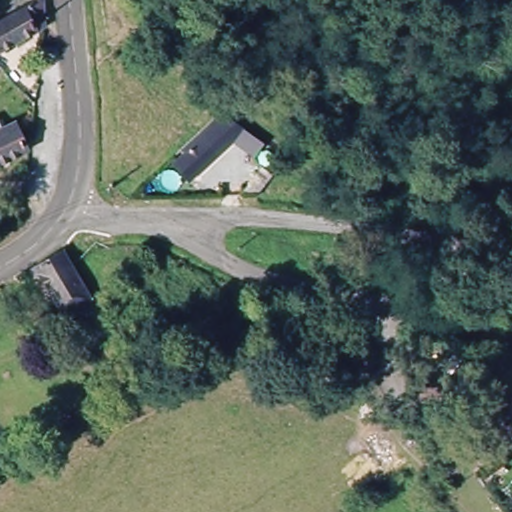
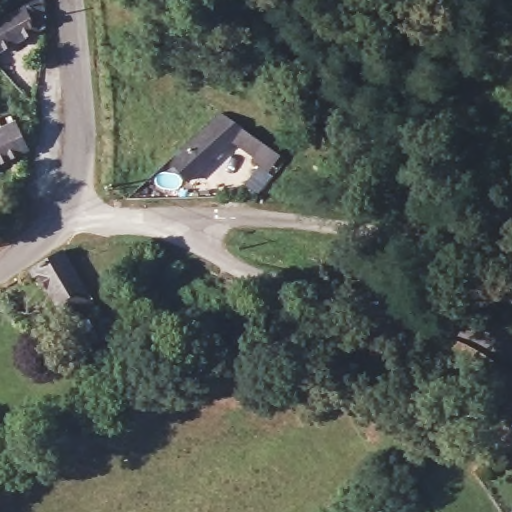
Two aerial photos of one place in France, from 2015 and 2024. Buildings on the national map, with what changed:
unchanged [(39,28),(0,54),(0,22),(34,0),(39,28)]
unchanged [(0,168),(0,120),(6,129),(17,124),(32,150),(0,168)]
unchanged [(190,181),(177,160),(235,122),(256,138),(190,181)]
unchanged [(90,291),(96,302),(69,317),(37,266),(65,249),(90,291)]
unchanged [(512,511),(512,512),(511,512),(512,511)]

